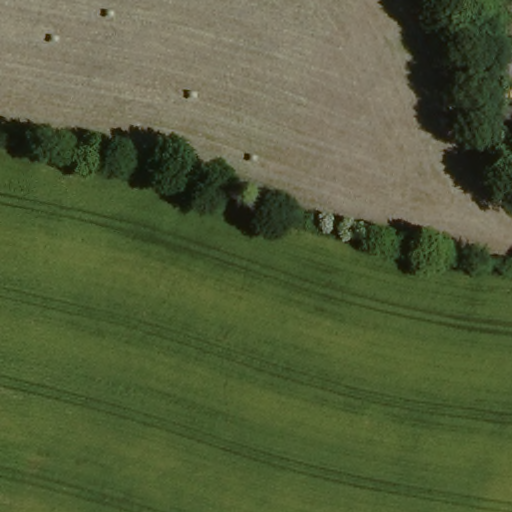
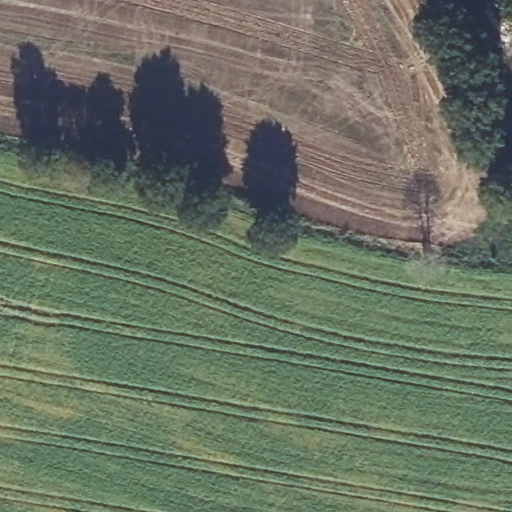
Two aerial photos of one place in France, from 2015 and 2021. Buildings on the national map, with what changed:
[]

